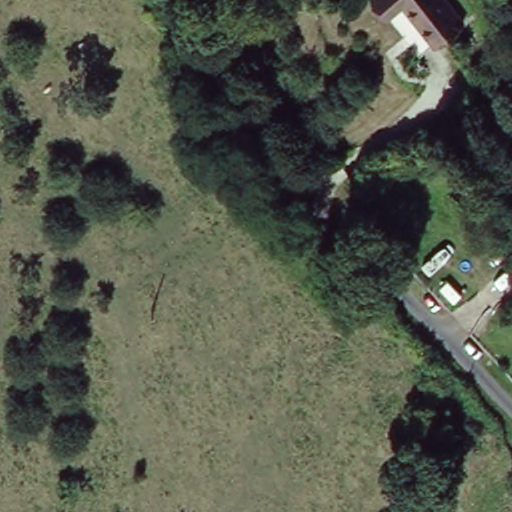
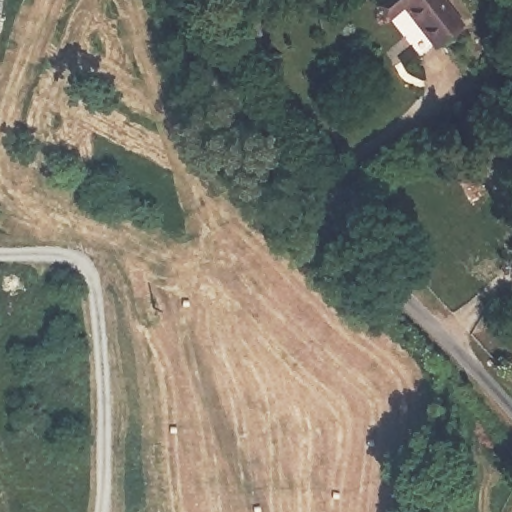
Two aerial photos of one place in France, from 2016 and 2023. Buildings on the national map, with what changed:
unchanged [(452,31),(421,47),(401,3),(387,11),(381,0),(437,0),(452,31)]

